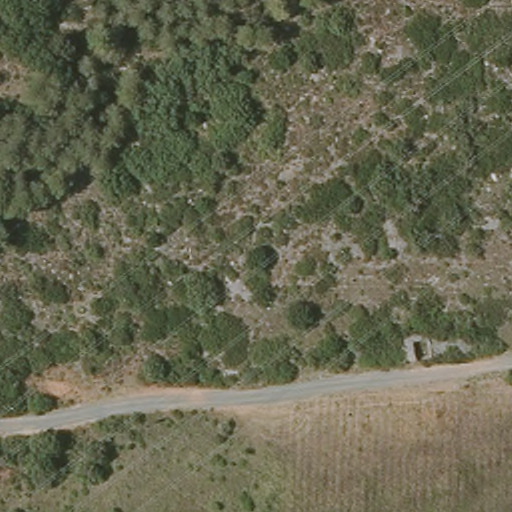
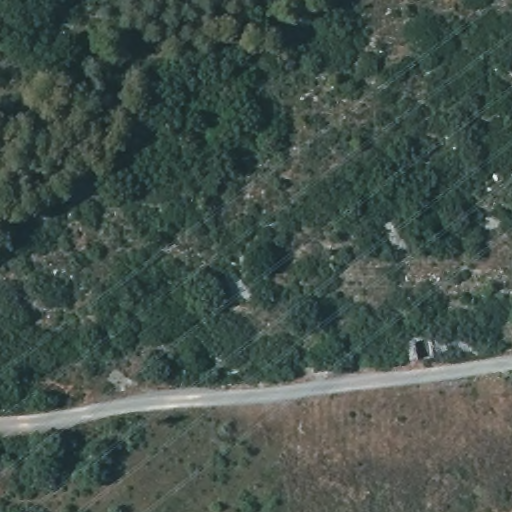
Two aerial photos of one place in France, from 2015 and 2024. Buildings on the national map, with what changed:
unchanged [(430,354),(407,357),(402,337),(425,334),(430,354)]

